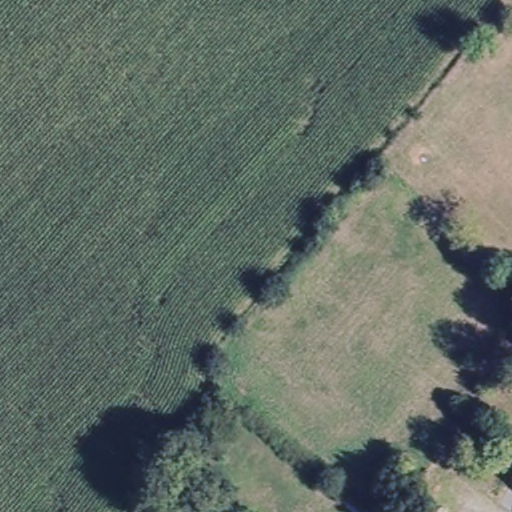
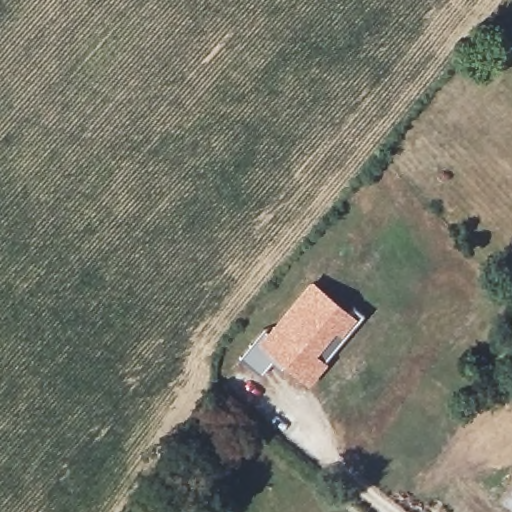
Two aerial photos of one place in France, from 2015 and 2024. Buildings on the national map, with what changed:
new [(256,339),(276,319),(312,278),(357,316),(325,358),(327,361),(308,383),(274,357),(260,373),(241,355),(256,339)]
unchanged [(512,480),(512,488),(508,485),(512,480)]
demolished [(417,512),(425,502),(437,512),(417,512)]

